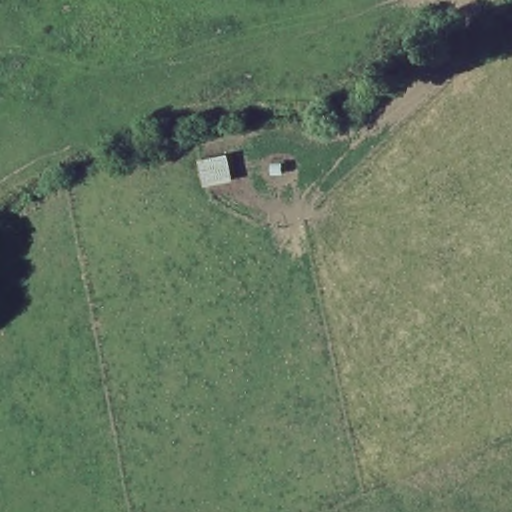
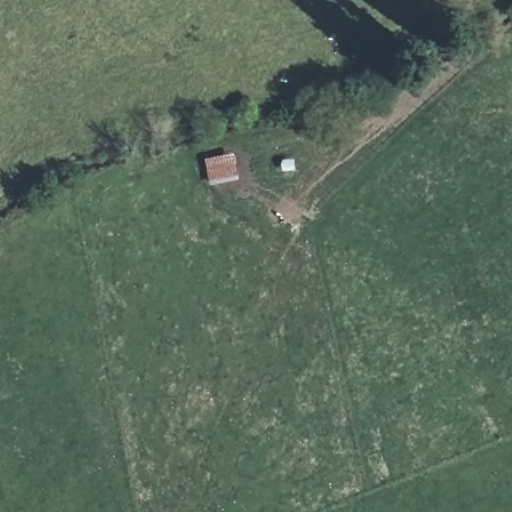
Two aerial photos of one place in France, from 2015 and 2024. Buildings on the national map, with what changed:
unchanged [(237,177),(208,182),(204,156),(234,151),(237,177)]

